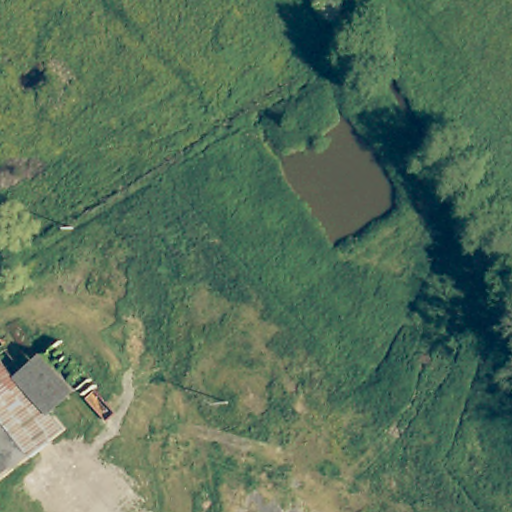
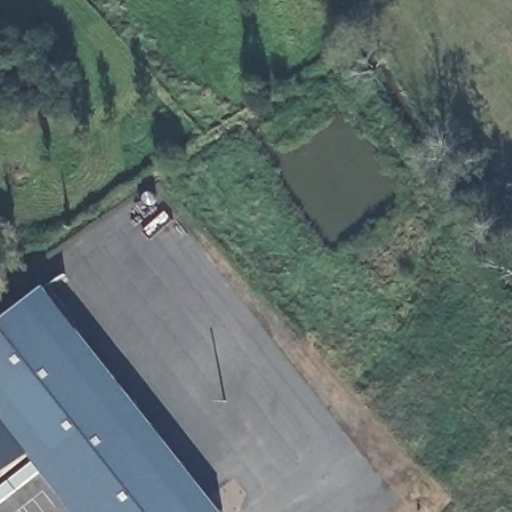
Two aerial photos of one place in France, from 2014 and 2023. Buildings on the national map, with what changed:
new [(225,512),(224,512),(76,512),(30,452),(60,428),(24,381),(19,385),(0,362),(0,321),(47,285),(225,512)]
new [(0,400),(0,362),(19,385),(0,400)]
unchanged [(24,381),(60,428),(0,476),(0,400),(19,385),(24,381)]

